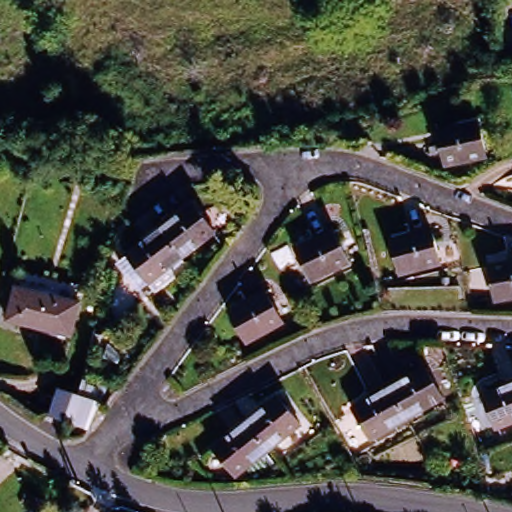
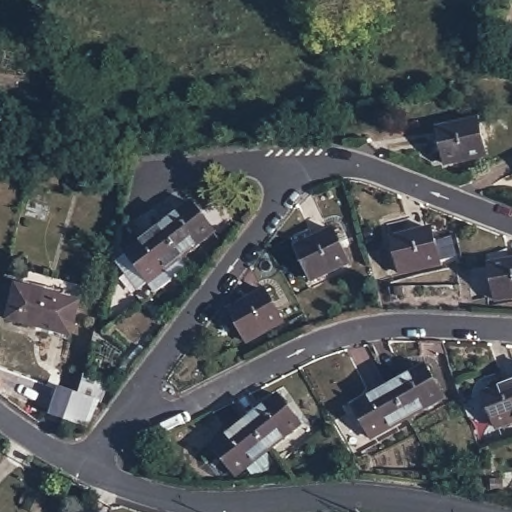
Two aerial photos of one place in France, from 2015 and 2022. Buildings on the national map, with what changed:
unchanged [(480,119),(487,148),(447,155),(441,127),(480,119)]
unchanged [(190,204),(215,234),(185,256),(162,226),(190,204)]
unchanged [(185,256),(152,280),(129,250),(162,226),(185,256)]
unchanged [(434,229),(440,260),(399,269),(392,238),(434,229)]
unchanged [(332,233),(345,262),(307,278),(294,250),(332,233)]
unchanged [(512,261),(512,289),(497,291),(494,264),(512,261)]
unchanged [(80,303),(70,337),(10,321),(19,287),(80,303)]
unchanged [(272,294),(284,322),(246,337),(234,311),(272,294)]
unchanged [(430,372),(443,401),(406,417),(392,389),(430,372)]
unchanged [(79,392),(84,378),(110,385),(92,432),(46,416),(58,388),(79,392)]
unchanged [(497,430),(484,396),(512,384),(512,424),(497,430)]
unchanged [(406,417),(367,434),(354,407),(392,389),(406,417)]
unchanged [(285,405),(297,434),(262,448),(256,433),(250,419),(285,405)]
unchanged [(256,433),(262,448),(225,463),(212,435),(250,419),(256,433)]

